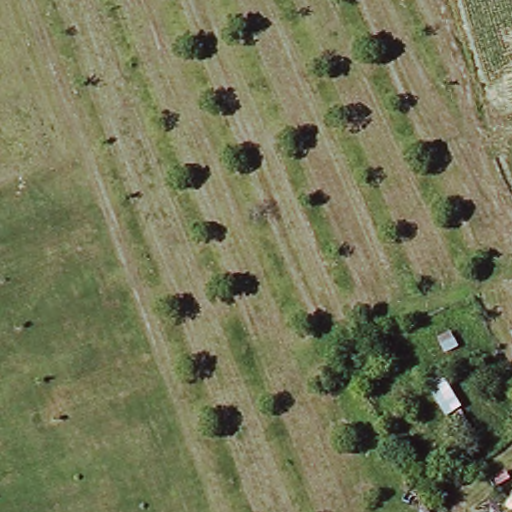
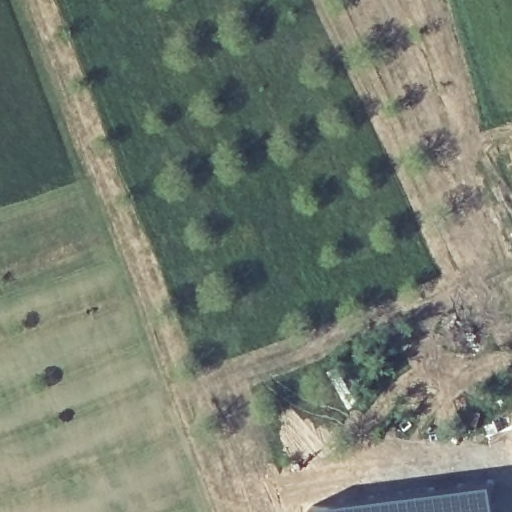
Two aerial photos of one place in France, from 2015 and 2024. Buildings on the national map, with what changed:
new [(495,512),(312,512),(311,504),(491,480),(495,512)]

